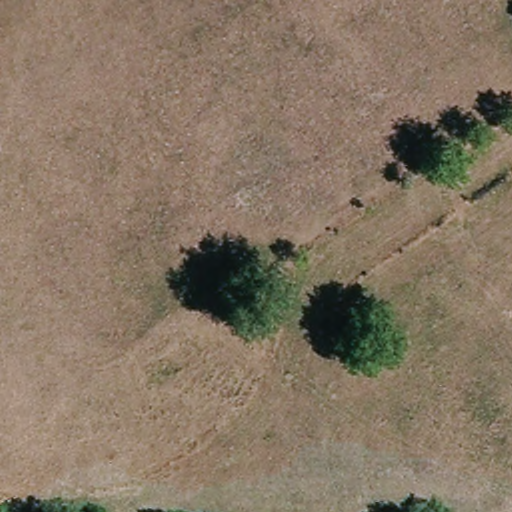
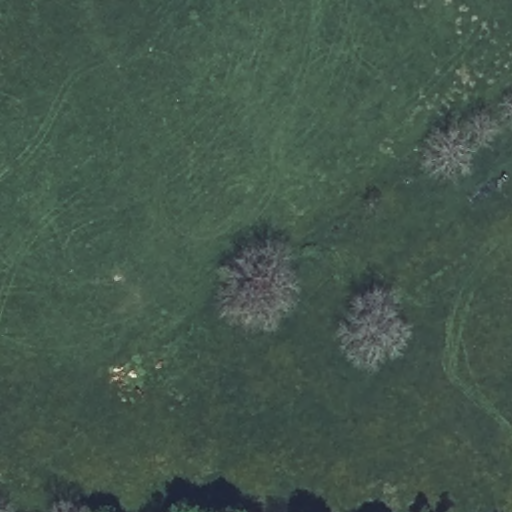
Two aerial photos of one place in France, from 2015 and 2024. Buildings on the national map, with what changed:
unchanged [(254,324),(238,335),(227,321),(243,310),(254,324)]

